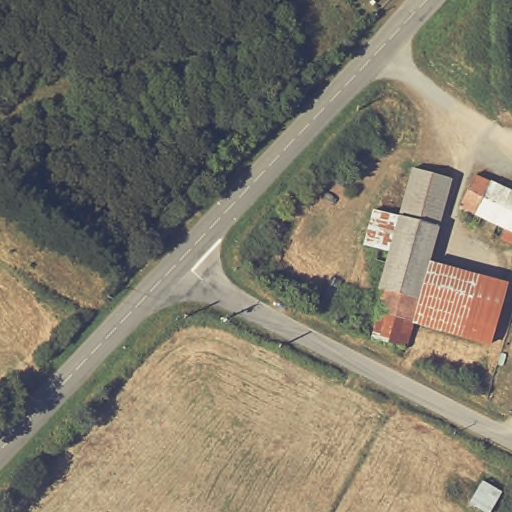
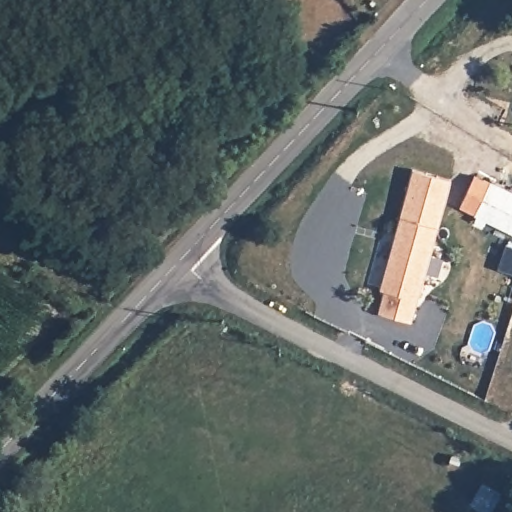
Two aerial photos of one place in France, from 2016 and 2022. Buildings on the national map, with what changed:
unchanged [(509,66),(512,66),(512,83),(509,66)]
unchanged [(393,251),(403,217),(416,168),(454,178),(449,199),(430,260),(393,251)]
unchanged [(500,238),(505,229),(458,206),(474,175),(512,193),(512,244),(500,238)]
unchanged [(386,290),(382,289),(393,251),(430,260),(421,299),(416,320),(381,312),(386,290)]

